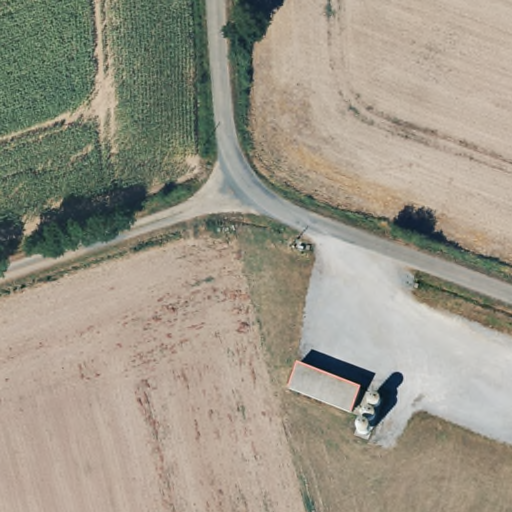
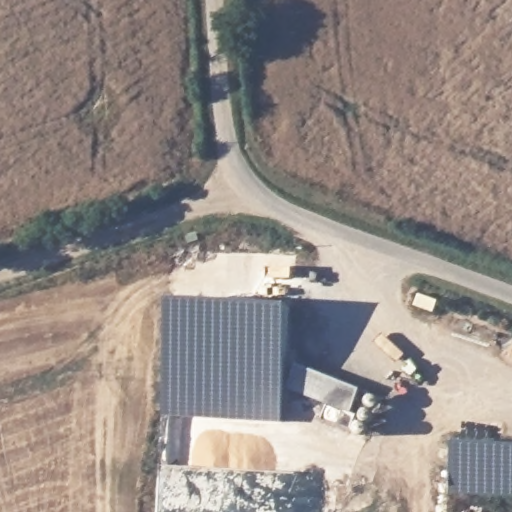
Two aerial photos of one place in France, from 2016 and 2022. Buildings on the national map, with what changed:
new [(169,298),(287,307),(283,423),(162,416),(169,298)]
unchanged [(359,395),(350,419),(287,393),(296,370),(359,395)]
unchanged [(363,438),(358,437),(355,433),(356,428),(362,416),(367,402),(372,397),(376,396),(380,398),(381,402),(378,409),(367,435),(363,438)]
new [(452,442),(512,445),(512,497),(450,494),(452,442)]

